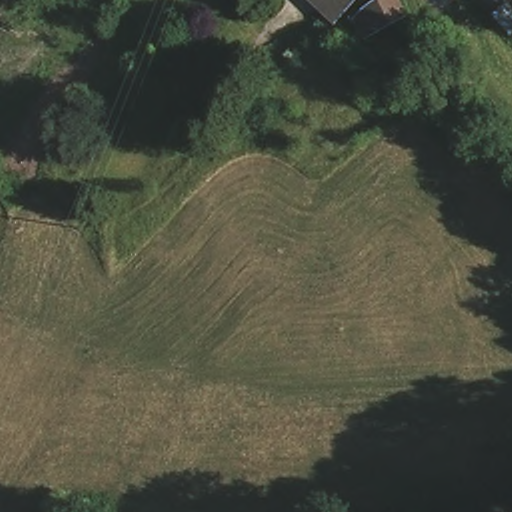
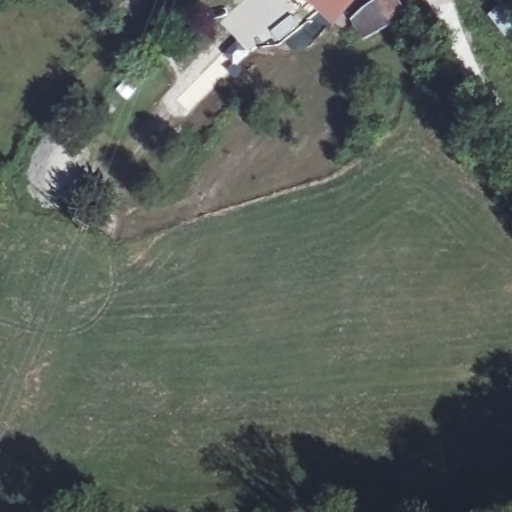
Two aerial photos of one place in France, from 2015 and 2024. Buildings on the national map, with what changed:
unchanged [(315,0),(355,0),(336,21),(324,8),(315,0)]
unchanged [(366,7),(380,0),(399,0),(408,13),(366,36),(354,18),(366,7)]

